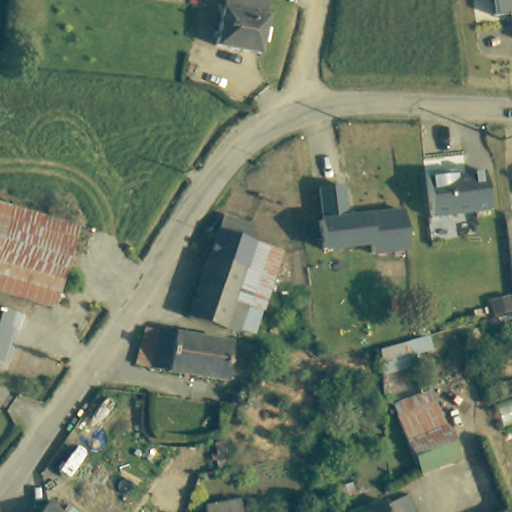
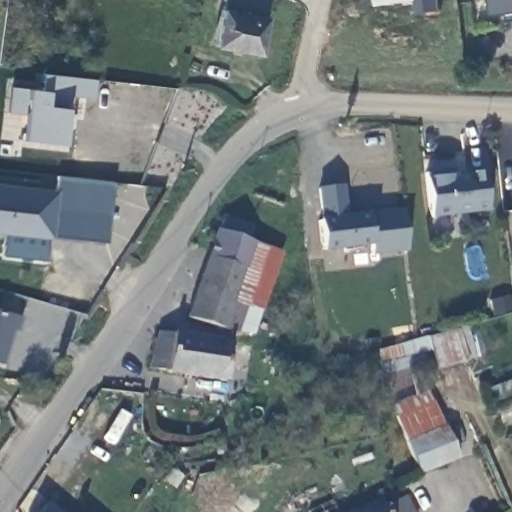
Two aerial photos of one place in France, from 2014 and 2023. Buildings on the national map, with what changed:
unchanged [(262,57),(217,49),(227,0),(272,0),(262,57)]
unchanged [(491,0),(512,0),(512,14),(493,16),(491,0)]
new [(10,86),(27,88),(46,90),(70,93),(66,107),(62,144),(20,139),(22,114),(7,113),(10,86)]
unchanged [(425,178),(485,172),(489,210),(430,218),(425,178)]
new [(56,175),(113,182),(106,240),(51,235),(50,237),(0,231),(0,183),(55,189),(56,175)]
unchanged [(378,254),(370,247),(321,250),(316,186),(347,185),(349,213),(402,210),(408,250),(378,254)]
unchanged [(240,334),(185,320),(220,217),(252,225),(251,228),(246,242),(254,244),(280,253),(260,312),(254,335),(240,334)]
unchanged [(22,315),(18,329),(12,328),(3,364),(0,363),(0,309),(22,315)]
unchanged [(232,348),(225,384),(145,369),(151,331),(232,348)]
unchanged [(445,422),(460,463),(421,477),(410,442),(393,403),(430,390),(445,422)]
unchanged [(244,512),(204,512),(202,506),(242,499),(244,512)]
unchanged [(386,506),(397,501),(403,512),(362,512),(383,501),(386,506)]
unchanged [(62,512),(43,512),(51,503),(62,512)]
unchanged [(89,512),(83,512),(85,509),(89,512)]

